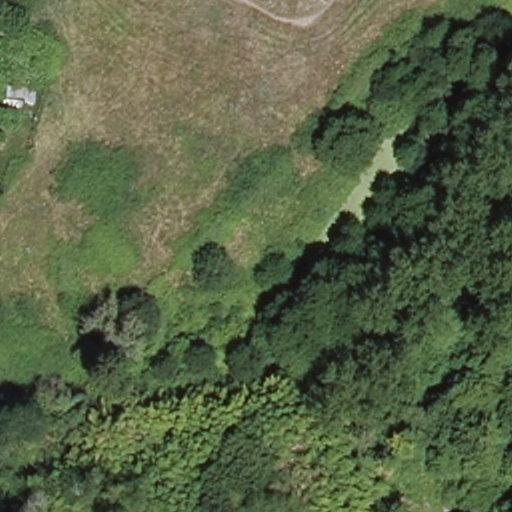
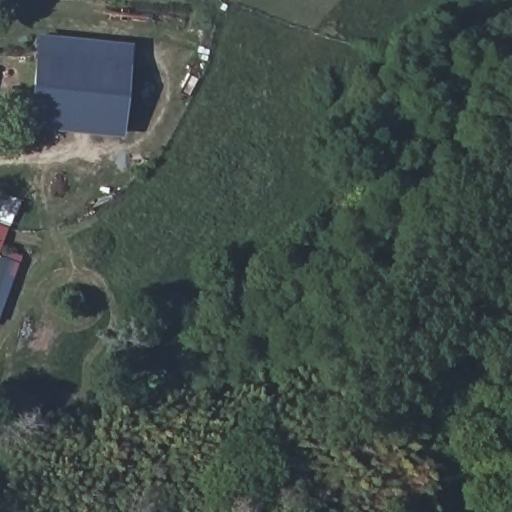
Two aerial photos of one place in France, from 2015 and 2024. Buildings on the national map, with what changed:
unchanged [(0,33),(6,35),(1,51),(15,55),(11,71),(0,67),(0,33)]
new [(28,128),(38,34),(131,45),(121,138),(28,128)]
new [(11,197),(21,202),(16,216),(8,227),(0,247),(0,198),(10,201),(11,197)]
new [(0,316),(0,248),(22,257),(0,316)]

